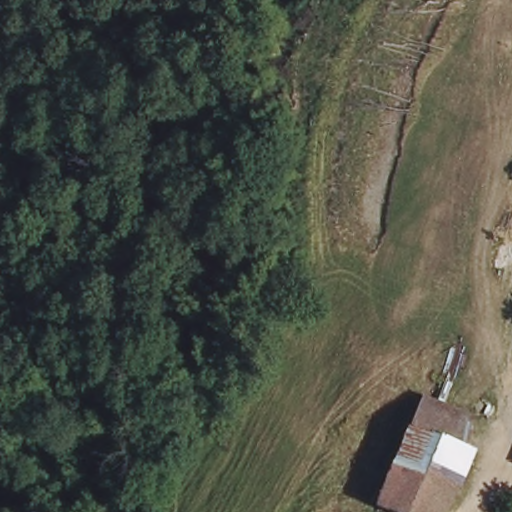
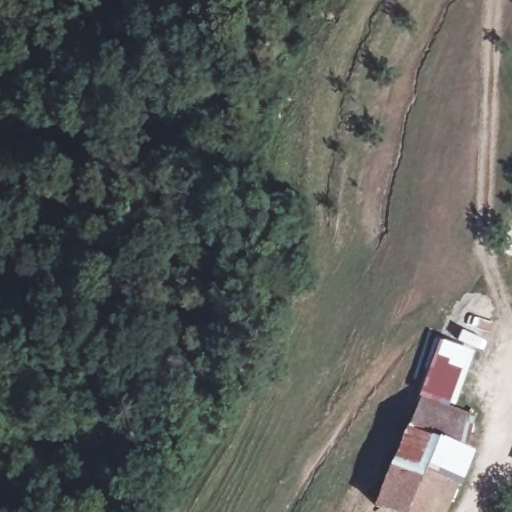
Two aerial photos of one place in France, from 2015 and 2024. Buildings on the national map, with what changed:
new [(476,352),(453,410),(422,400),(418,398),(440,340),(476,352)]
unchanged [(476,417),(467,458),(477,465),(468,488),(457,486),(446,512),(379,512),(372,509),(402,432),(422,400),(476,417)]

